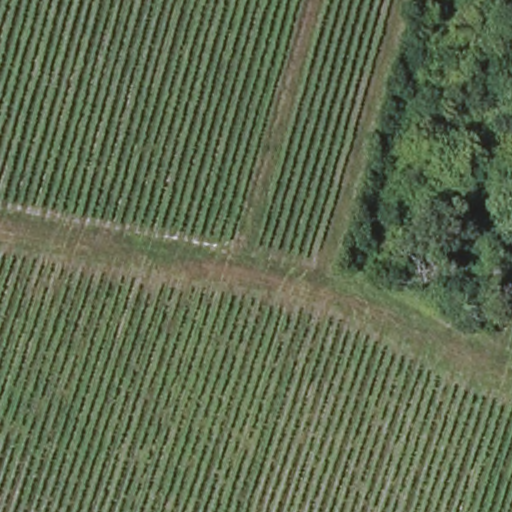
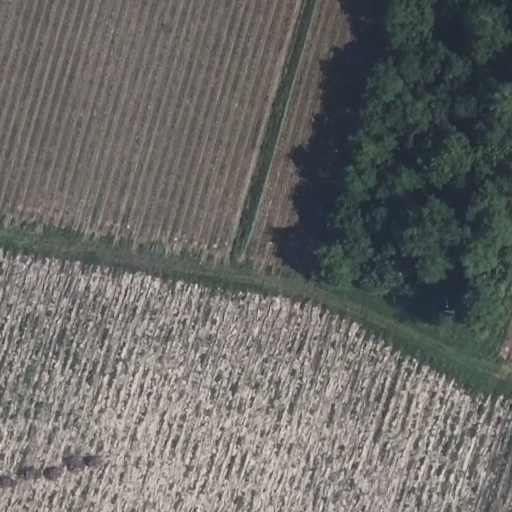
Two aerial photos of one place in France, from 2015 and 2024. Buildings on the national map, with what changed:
[]

